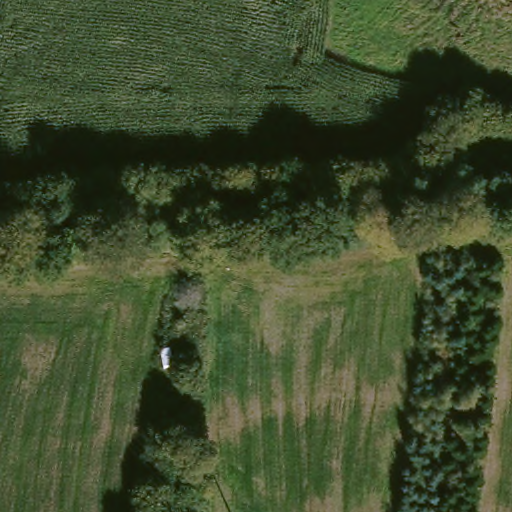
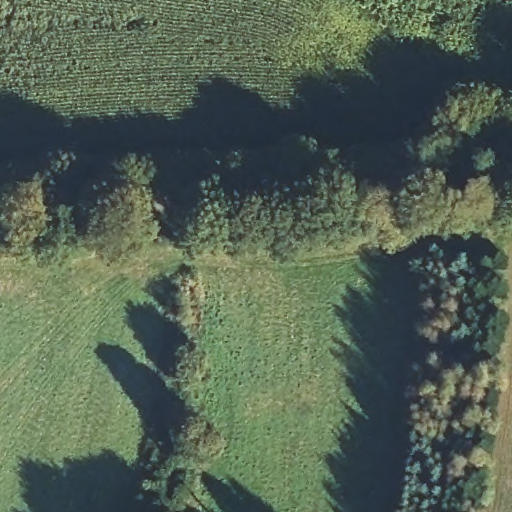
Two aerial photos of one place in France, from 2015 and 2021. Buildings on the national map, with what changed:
[]

